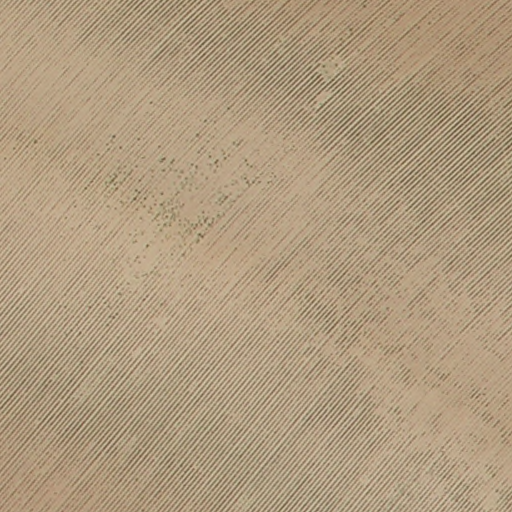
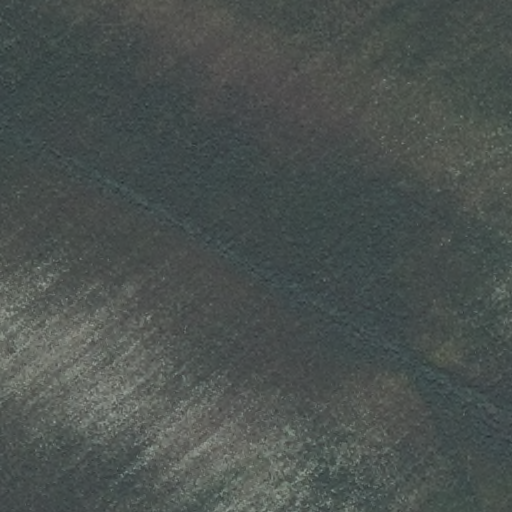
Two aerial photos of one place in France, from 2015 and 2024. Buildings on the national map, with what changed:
[]

